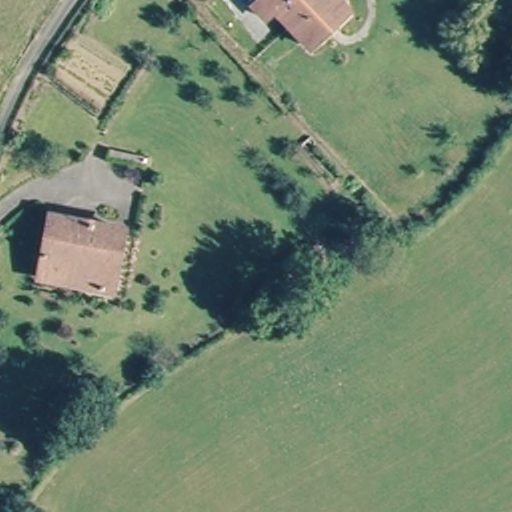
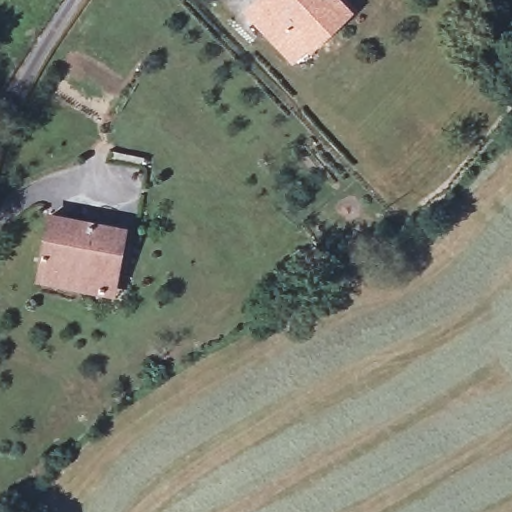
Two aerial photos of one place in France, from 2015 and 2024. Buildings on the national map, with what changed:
unchanged [(311,49),(306,43),(280,11),(271,17),(260,3),(263,0),(339,0),(346,9),(351,14),(311,49)]
unchanged [(493,0),(512,0),(512,11),(490,29),(477,12),(493,0)]
unchanged [(40,277),(55,217),(122,234),(107,293),(82,287),(40,277)]

